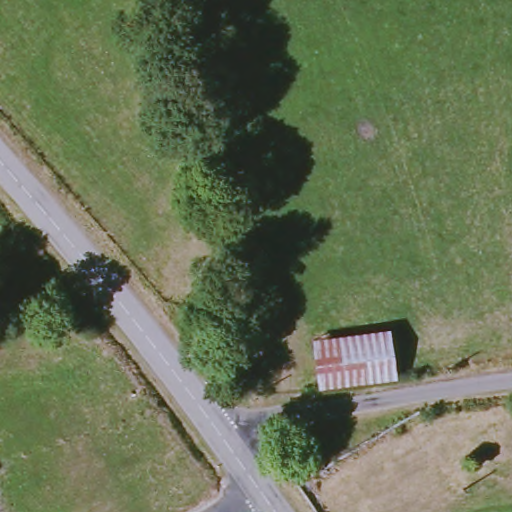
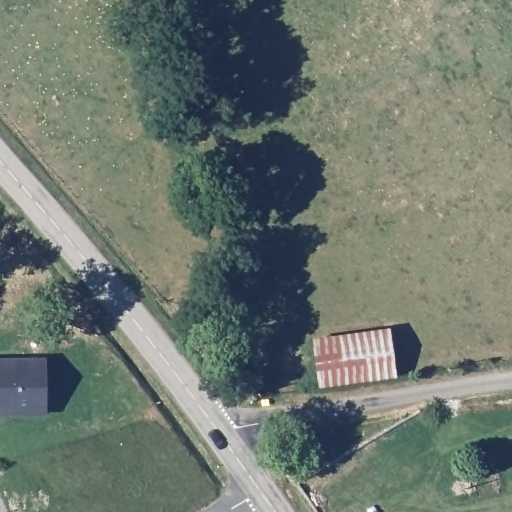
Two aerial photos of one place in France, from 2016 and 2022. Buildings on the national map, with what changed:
unchanged [(392,329),(402,381),(319,387),(314,341),(392,329)]
new [(45,414),(0,414),(0,357),(46,357),(45,414)]

